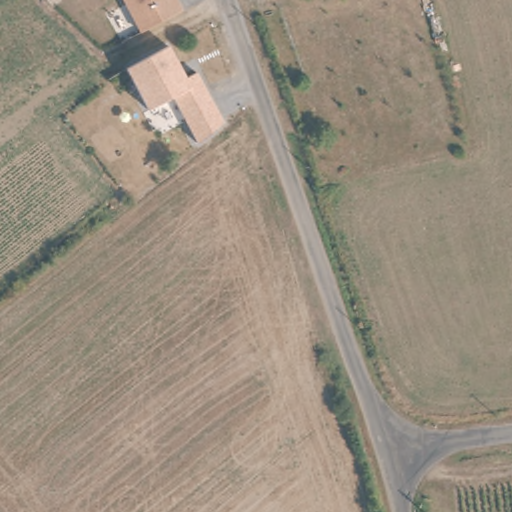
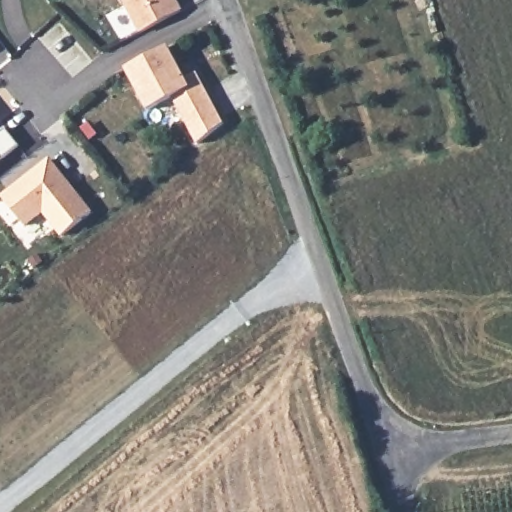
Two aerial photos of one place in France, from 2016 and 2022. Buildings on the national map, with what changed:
unchanged [(140,34),(122,0),(174,0),(180,11),(140,34)]
unchanged [(185,79),(196,72),(224,124),(195,142),(171,98),(146,110),(125,70),(170,45),(185,79)]
new [(0,131),(3,129),(16,145),(0,159),(0,131)]
new [(60,236),(41,213),(25,225),(0,195),(49,157),(92,211),(60,236)]

